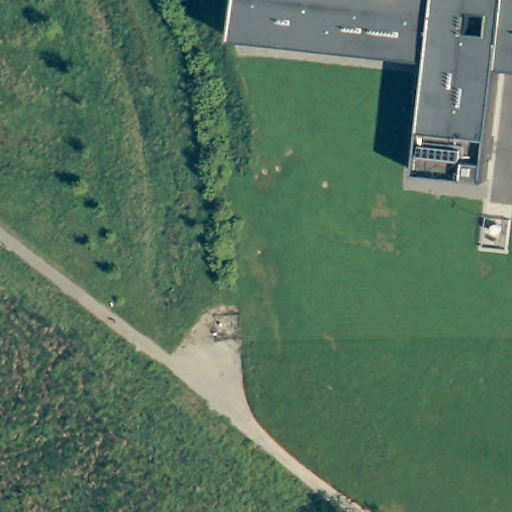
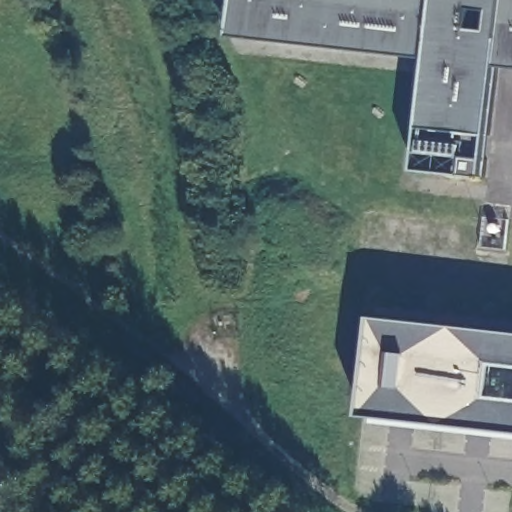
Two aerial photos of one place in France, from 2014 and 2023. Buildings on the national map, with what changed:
unchanged [(466,176),(416,169),(422,128),(430,60),(233,36),(237,0),(512,0),(512,67),(499,65),(485,178),(466,176)]
new [(362,415),(373,317),(512,333),(512,365),(493,363),(488,398),(512,401),(512,432),(362,415)]

